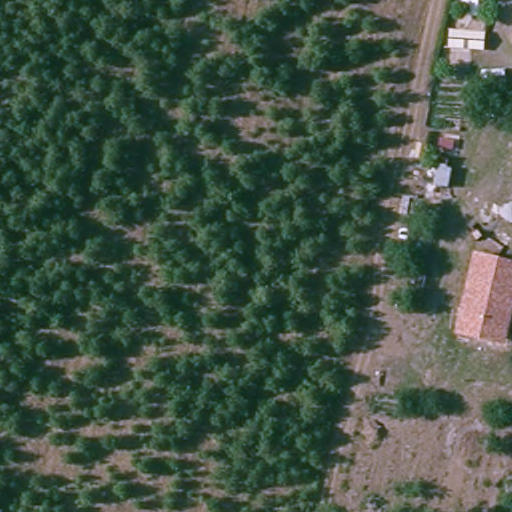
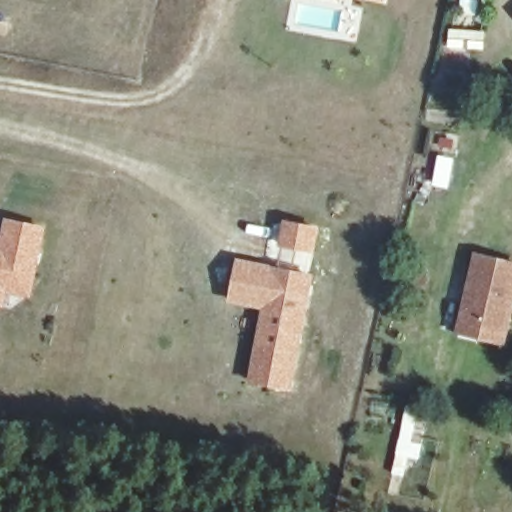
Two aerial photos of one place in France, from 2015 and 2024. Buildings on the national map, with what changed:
new [(386,2),(372,0),(386,0),(386,2)]
new [(46,225),(30,298),(7,294),(4,307),(0,307),(0,231),(4,216),(46,225)]
unchanged [(505,345),(454,333),(473,251),(512,261),(512,315),(505,345)]
new [(313,274),(292,390),(248,382),(262,309),(227,302),(236,258),(313,274)]

